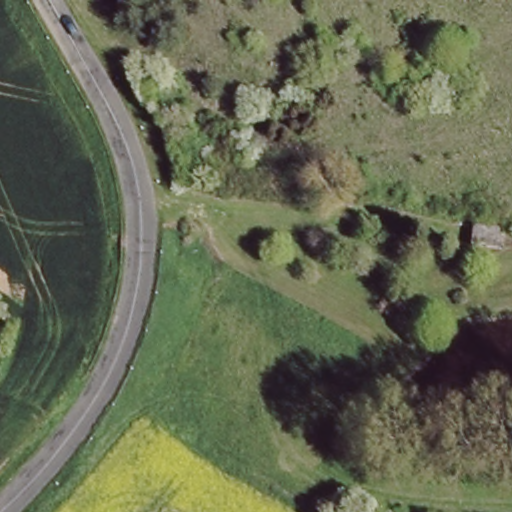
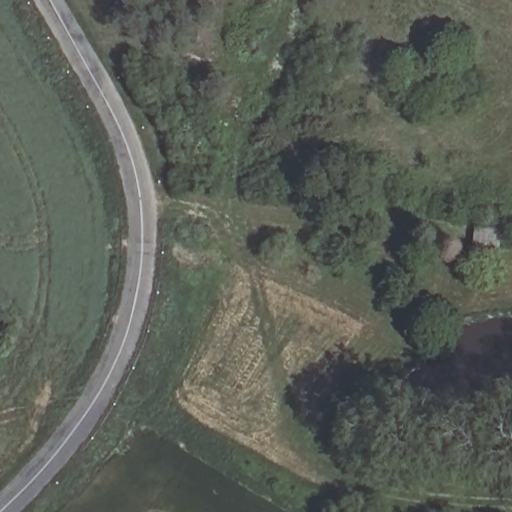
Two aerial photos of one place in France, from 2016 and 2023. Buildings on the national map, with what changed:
unchanged [(475,249),(477,223),(505,228),(502,250),(475,249)]

